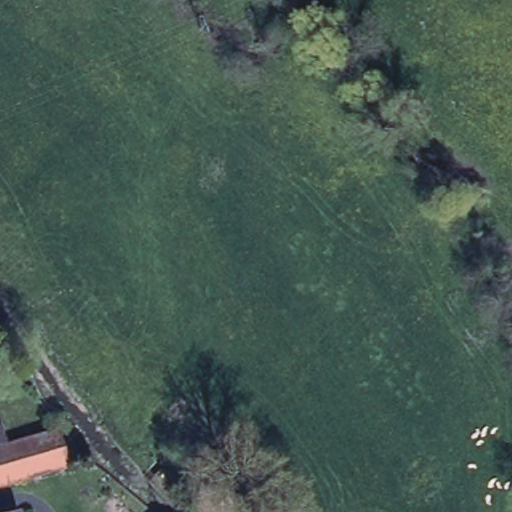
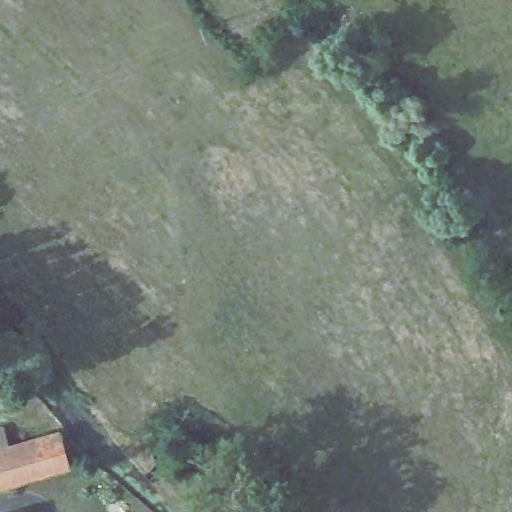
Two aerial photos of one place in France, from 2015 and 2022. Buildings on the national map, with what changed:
unchanged [(13,447),(3,449),(0,450),(0,430),(8,428),(13,447)]
unchanged [(13,447),(63,433),(73,468),(13,483),(3,449),(13,447)]
unchanged [(0,450),(3,449),(13,483),(0,486),(0,450)]

